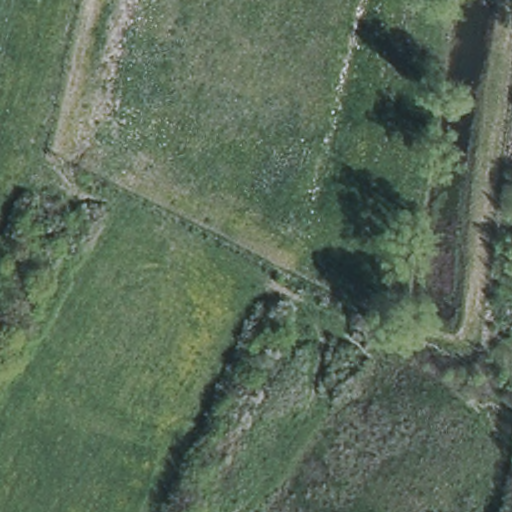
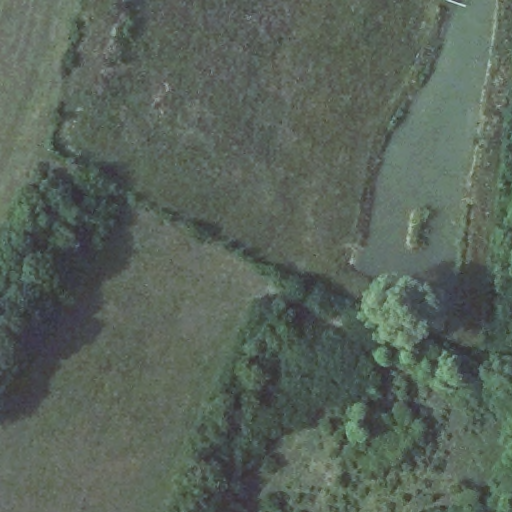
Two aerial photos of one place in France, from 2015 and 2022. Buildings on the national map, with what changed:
[]

